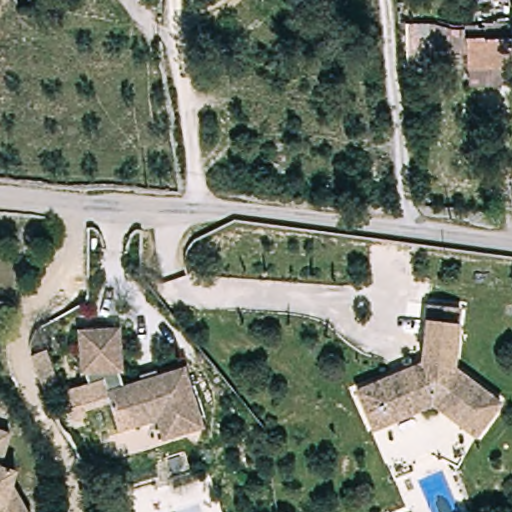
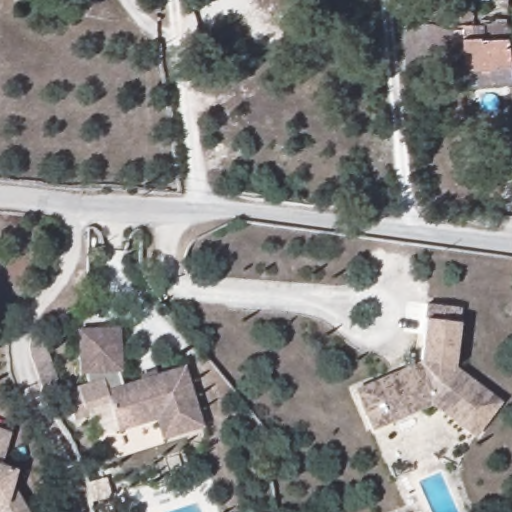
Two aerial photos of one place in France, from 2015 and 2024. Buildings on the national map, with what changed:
unchanged [(408,62),(403,19),(427,20),(448,22),(454,25),(463,27),(493,26),(494,40),(512,40),(512,67),(475,70),(474,54),(432,56),(436,68),(409,69),(408,62)]
unchanged [(429,402),(422,395),(408,403),(412,409),(392,422),(381,404),(370,386),(421,356),(429,300),(463,305),(454,361),(496,400),(471,426),(464,434),(429,402)]
unchanged [(74,385),(100,377),(99,373),(78,374),(74,328),(118,325),(121,372),(118,372),(121,383),(183,364),(201,427),(159,441),(152,420),(118,431),(108,400),(81,410),(74,385)]
unchanged [(44,363),(49,376),(54,389),(45,392),(36,366),(44,363)]
unchanged [(0,456),(0,430),(8,432),(0,456)]
unchanged [(7,485),(22,512),(0,512),(0,465),(12,469),(7,485)]

